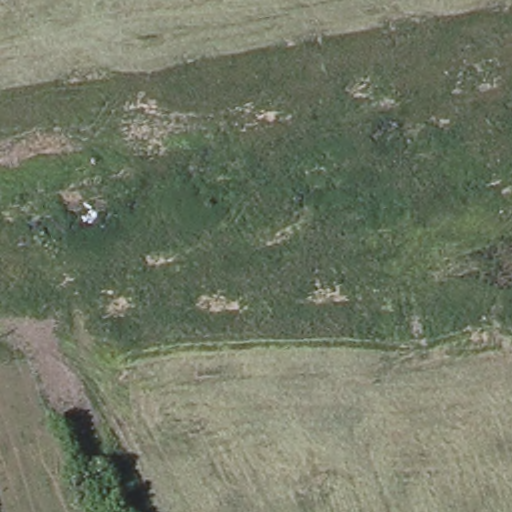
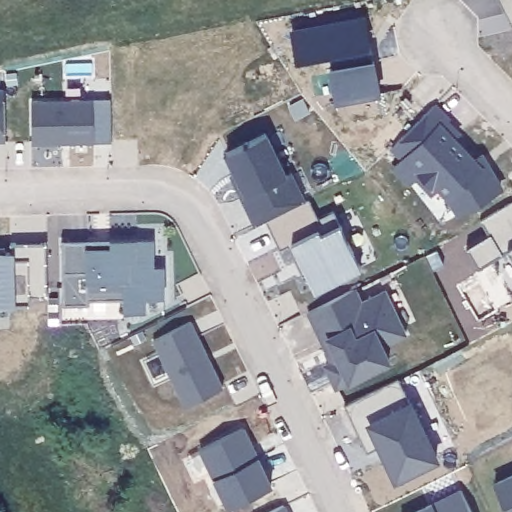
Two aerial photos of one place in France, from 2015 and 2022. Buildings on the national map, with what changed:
new [(512,0),(512,24),(500,0),(512,0)]
new [(365,13),(382,95),(334,103),(327,66),(331,65),(329,54),(295,61),(290,27),(365,13)]
new [(4,88),(5,141),(0,141),(0,88),(4,88)]
new [(110,98),(110,142),(32,144),(30,100),(110,98)]
new [(504,188),(457,215),(447,199),(437,189),(431,196),(415,179),(407,185),(390,168),(400,159),(390,148),(435,102),(452,118),(450,119),(460,129),(455,135),(476,156),(482,151),(504,188)]
new [(305,200),(307,199),(317,219),(332,211),(334,214),(339,212),(367,270),(312,297),(287,245),(279,249),(265,220),(254,225),(229,174),(232,172),(224,154),(267,133),(286,174),(292,170),(305,200)]
new [(512,252),(509,247),(478,266),(467,247),(489,234),(481,220),(512,202),(512,252)]
new [(85,238),(85,246),(110,245),(110,238),(152,238),(154,265),(163,264),(164,297),(146,297),(147,309),(124,310),(124,296),(89,297),(89,302),(62,302),(61,239),(85,238)]
new [(48,289),(32,290),(32,298),(0,299),(0,252),(12,252),(12,243),(47,240),(48,289)]
new [(407,334),(384,344),(392,360),(347,382),(335,387),(322,363),(329,360),(307,311),(356,287),(362,299),(385,288),(407,334)]
new [(192,320),(224,386),(184,404),(152,339),(192,320)]
new [(425,436),(429,435),(439,458),(393,481),(376,446),(366,451),(344,404),(398,378),(425,436)]
new [(244,429),(272,492),(230,512),(225,512),(199,451),(244,429)]
new [(512,512),(510,512),(497,480),(512,473),(512,512)]
new [(459,489),(470,512),(410,512),(459,489)]
new [(285,504),(289,512),(268,512),(285,504)]

